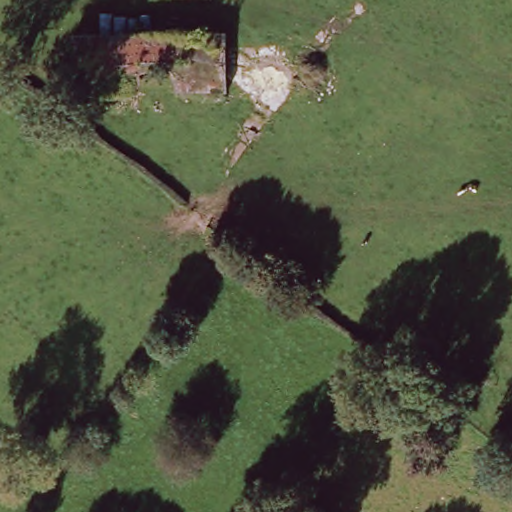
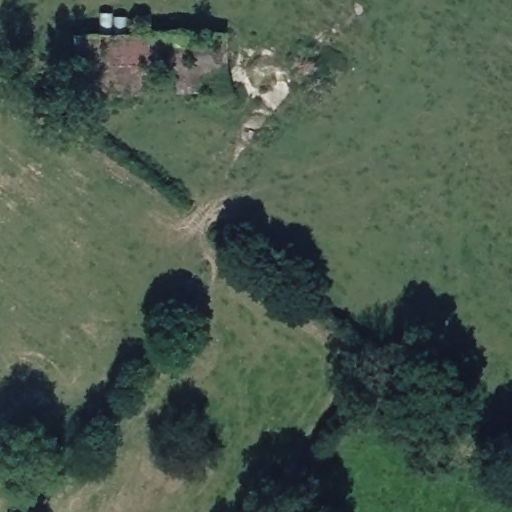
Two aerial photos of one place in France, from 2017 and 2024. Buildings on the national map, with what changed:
unchanged [(225,35),(225,72),(142,71),(144,97),(115,95),(117,77),(79,77),(77,34),(225,35)]

